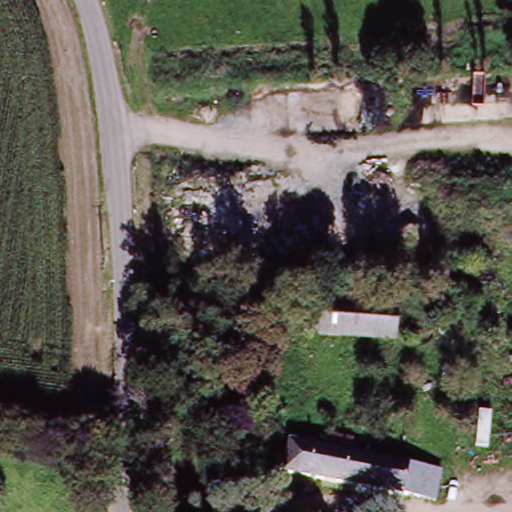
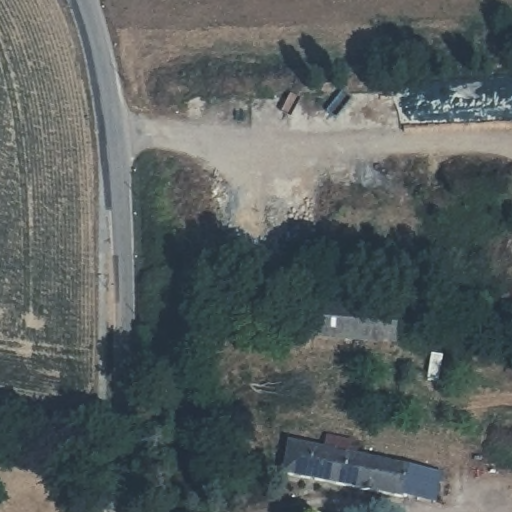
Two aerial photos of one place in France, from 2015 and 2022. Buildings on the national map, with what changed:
unchanged [(322,339),(268,335),(269,319),(323,323),(325,303),(402,309),(400,344),(322,339)]
unchanged [(401,465),(431,470),(425,502),(283,476),(288,447),(307,450),(310,436),(331,440),(329,452),(401,465)]

